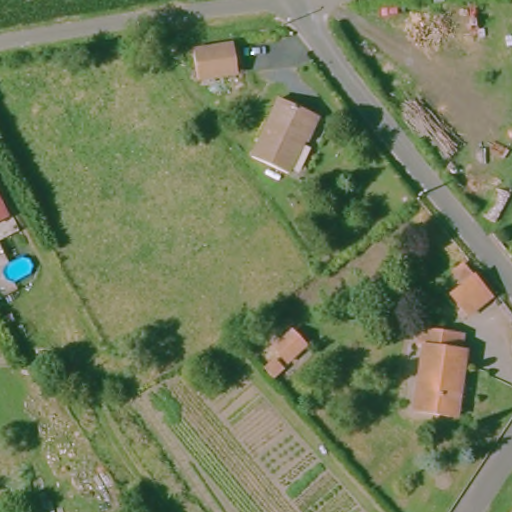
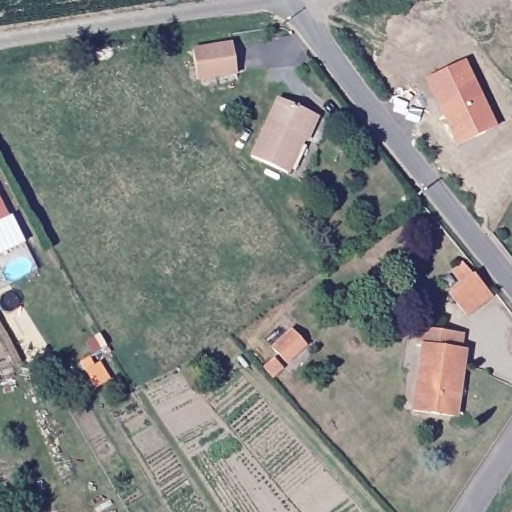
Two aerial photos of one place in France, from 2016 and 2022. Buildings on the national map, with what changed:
unchanged [(197,51),(237,47),(242,74),(200,79),(197,51)]
new [(467,57),(493,127),(454,142),(427,73),(467,57)]
unchanged [(260,153),(289,95),(323,111),(294,169),(260,153)]
unchanged [(12,222),(0,228),(0,196),(12,222)]
unchanged [(499,300),(475,318),(459,297),(470,289),(460,275),(470,268),(480,280),(482,279),(499,300)]
unchanged [(420,412),(432,348),(426,347),(428,332),(472,339),(470,355),(473,356),(463,420),(420,412)]
unchanged [(273,358),(294,343),(307,360),(287,375),(273,358)]

